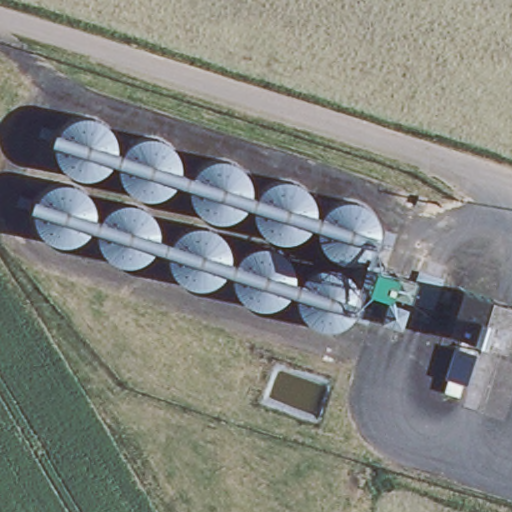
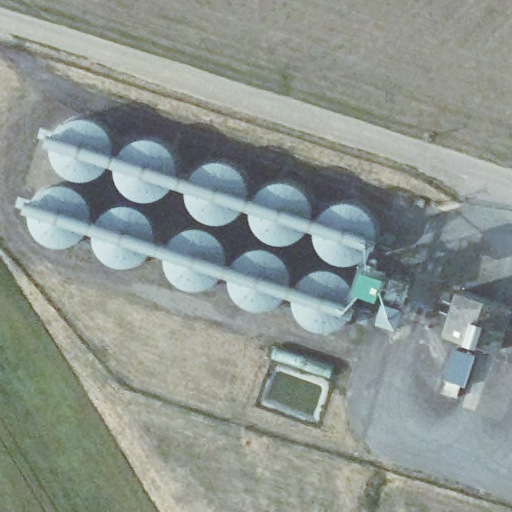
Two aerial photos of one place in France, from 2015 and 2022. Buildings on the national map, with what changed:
unchanged [(53,135),(57,130),(61,125),(67,120),(75,117),(85,116),(93,117),(101,121),(106,125),(112,132),(115,141),(117,154),(122,150),(125,145),(132,141),(142,137),(152,136),(158,138),(165,143),(171,150),(177,159),(180,167),(183,175),(186,172),(191,168),(200,162),(208,160),(218,160),(228,162),(236,166),(243,173),(247,179),(250,187),(250,196),(257,190),(265,185),(273,182),(282,181),(292,184),(302,187),(310,196),(313,205),(315,217),(318,214),(324,209),(331,204),(340,200),(349,200),(358,202),(365,205),(371,211),(375,220),(377,231),(377,237),(375,244),(373,246),(369,252),(362,257),(355,260),(347,263),(338,262),(330,260),(322,255),(317,247),(314,240),(311,226),(306,231),(298,237),(292,240),(285,241),(276,241),(269,240),(262,235),(257,231),(253,224),(250,215),(249,202),(242,210),(235,215),(230,220),(222,221),(212,222),(203,219),(197,214),(191,207),(187,200),(182,186),(180,180),(174,186),(168,191),(160,195),(151,197),(142,197),(133,195),(127,192),(121,186),(116,177),(113,170),(113,161),(110,165),(103,171),(96,175),(87,177),(79,177),(72,175),(65,171),(60,167),(56,162),(53,154),(52,147),(53,135)]
unchanged [(38,190),(47,184),(55,182),(62,182),(70,184),(78,188),(83,192),(89,201),(92,210),(92,220),(98,215),(107,209),(115,204),(124,203),(132,204),(140,207),(149,214),(155,224),(160,235),(163,242),(168,239),(172,235),(180,230),(187,227),(195,226),(203,226),(212,230),(220,236),(225,244),(229,254),(230,263),(237,257),(243,251),(252,246),(262,245),(270,248),(277,252),(285,258),(288,262),(292,275),(293,285),(297,281),(303,275),(311,269),(320,266),(330,266),(340,270),(347,276),(352,283),(356,291),(357,303),(357,310),(350,319),(345,323),(335,328),(325,328),(315,328),(305,322),(299,316),(295,308),(292,300),(292,290),(287,296),(280,301),(272,305),(265,308),(254,308),(245,304),(237,297),(233,293),(230,285),(227,268),(223,275),(217,281),(207,286),(200,287),(192,287),(183,285),(177,282),(172,276),(167,267),(163,258),(158,246),(152,254),(144,260),(137,263),(127,265),(118,265),(111,261),(104,256),(99,250),(94,240),(90,228),(85,235),(77,239),(68,242),(58,243),(50,241),(42,238),(37,234),(32,226),(30,218),(29,209),(30,203),(32,196),(38,190)]
unchanged [(385,270),(378,290),(359,284),(365,263),(385,270)]
unchanged [(411,278),(405,298),(385,291),(390,272),(411,278)]
unchanged [(512,304),(512,318),(502,347),(449,330),(462,288),(512,304)]
unchanged [(505,348),(512,325),(512,350),(505,348)]
unchanged [(478,352),(467,383),(449,377),(459,346),(478,352)]

